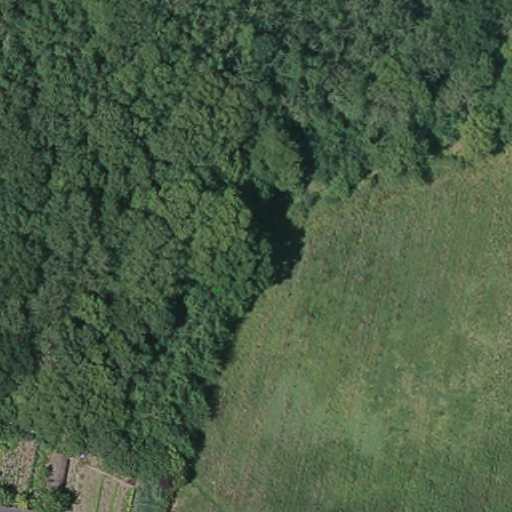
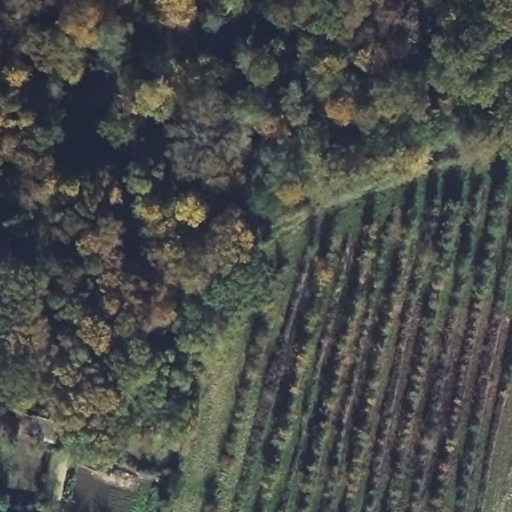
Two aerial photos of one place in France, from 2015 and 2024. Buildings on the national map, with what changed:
[]

